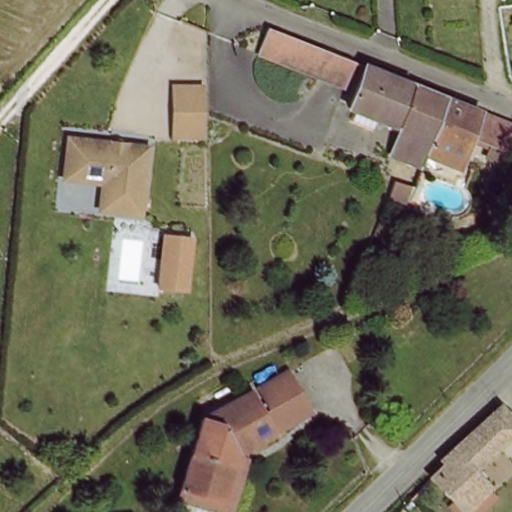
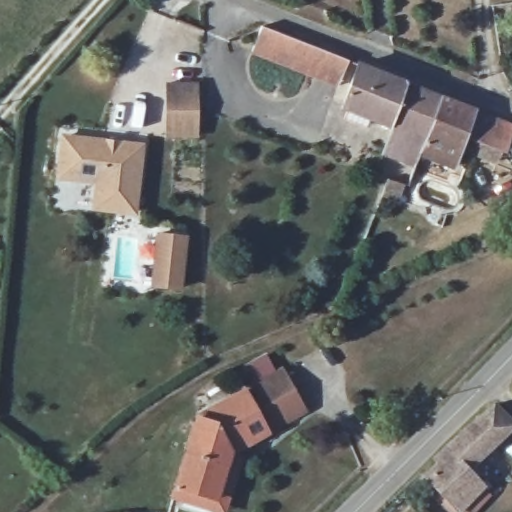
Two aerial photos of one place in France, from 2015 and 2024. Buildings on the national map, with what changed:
unchanged [(245,51),(255,27),(343,63),(332,88),(245,51)]
unchanged [(436,103),(414,162),(410,172),(371,157),(383,130),(348,115),(363,73),(436,103)]
unchanged [(193,137),(167,137),(167,87),(193,87),(193,137)]
unchanged [(511,133),(501,156),(468,142),(452,177),(414,162),(436,103),(511,133)]
unchanged [(95,209),(97,194),(99,182),(60,178),(65,138),(108,143),(110,131),(122,133),(121,145),(143,147),(137,198),(135,214),(95,209)]
unchanged [(184,292),(150,288),(156,234),(190,238),(184,292)]
unchanged [(196,418),(244,392),(255,413),(265,409),(252,388),(282,372),(304,412),(244,444),(228,453),(215,495),(176,484),(196,418)]
unchanged [(439,496),(423,479),(435,468),(437,462),(491,410),(512,432),(512,434),(463,476),(439,496)]
unchanged [(172,498),(176,484),(215,495),(228,453),(244,444),(225,511),(172,498)]
unchanged [(469,512),(453,512),(439,496),(463,476),(485,500),(469,512)]

